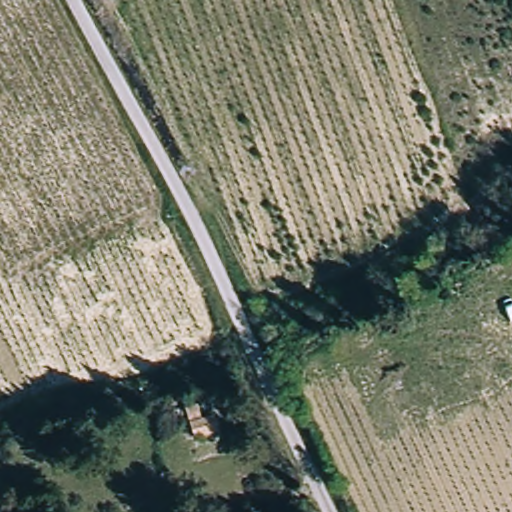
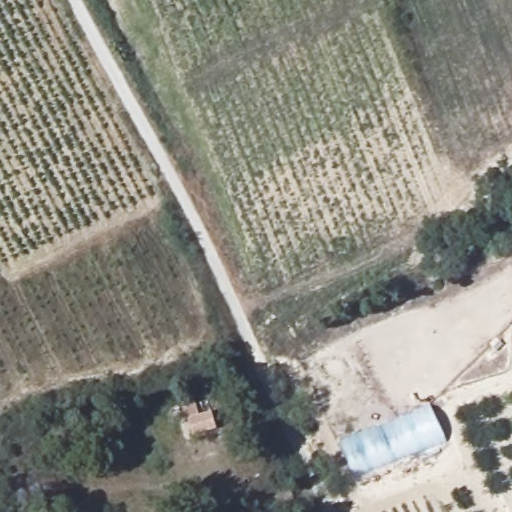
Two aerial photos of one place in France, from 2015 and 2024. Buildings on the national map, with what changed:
unchanged [(183,403),(195,400),(200,415),(212,411),(217,425),(192,432),(183,403)]
new [(429,406),(444,440),(353,477),(339,444),(429,406)]

